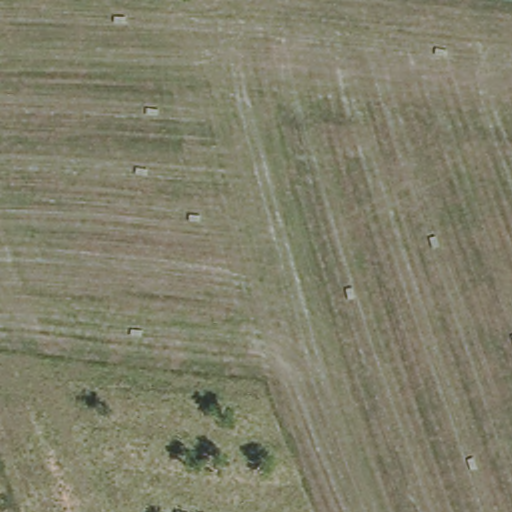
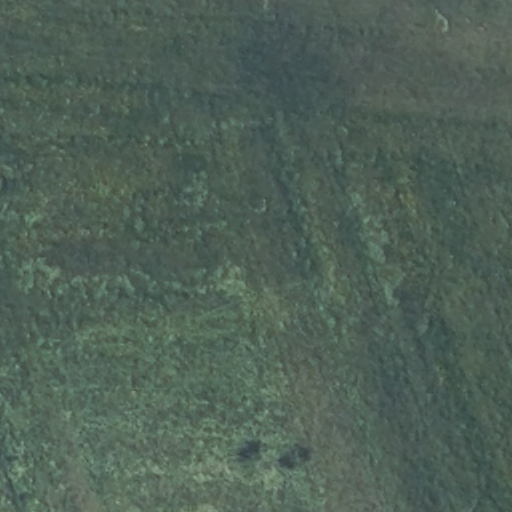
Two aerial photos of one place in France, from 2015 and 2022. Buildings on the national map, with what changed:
[]

